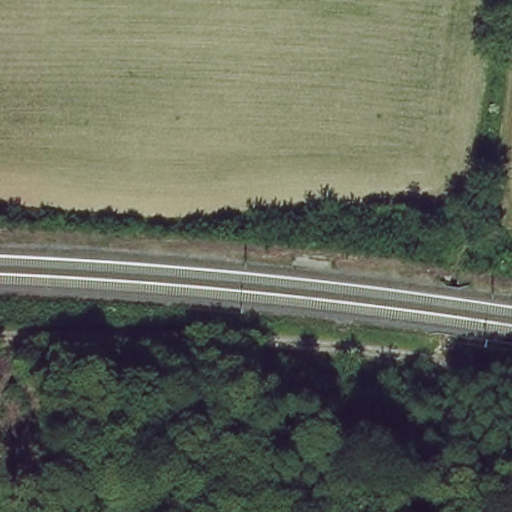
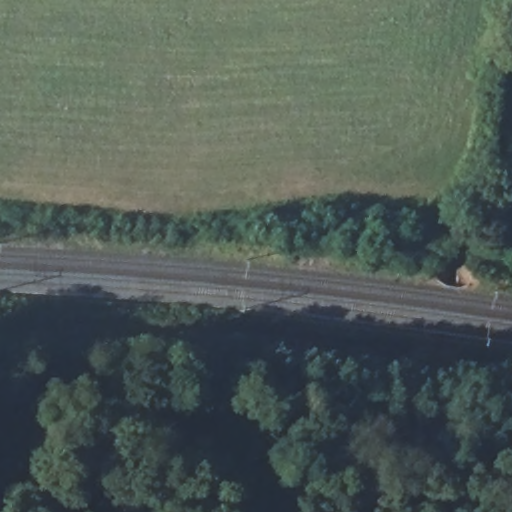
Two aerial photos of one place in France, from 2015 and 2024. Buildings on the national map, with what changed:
[]

